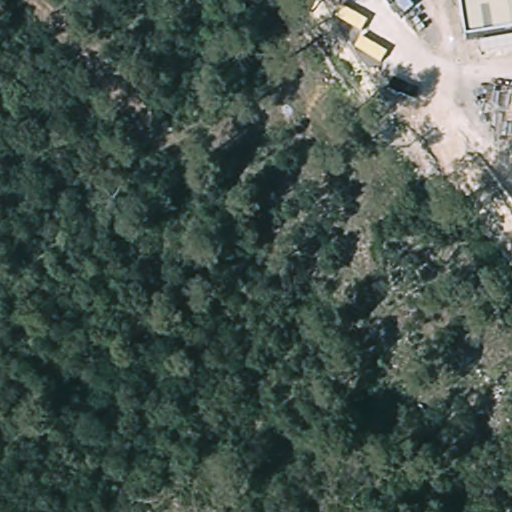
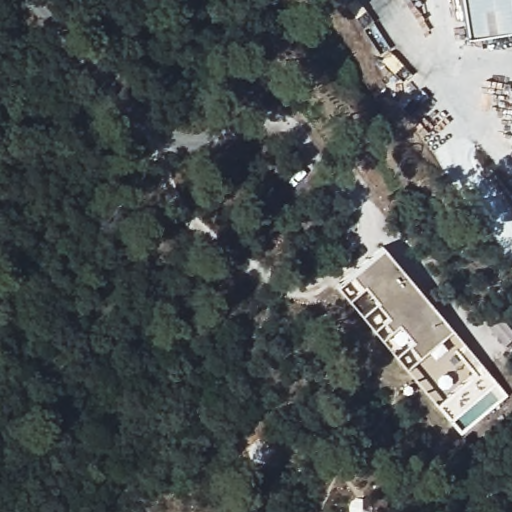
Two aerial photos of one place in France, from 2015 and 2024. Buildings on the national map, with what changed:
demolished [(448,10),(402,51),(383,32),(417,0),(441,0),(448,10)]
unchanged [(454,0),(512,0),(512,32),(460,39),(454,0)]
new [(458,434),(335,287),(382,247),(508,396),(458,434)]

